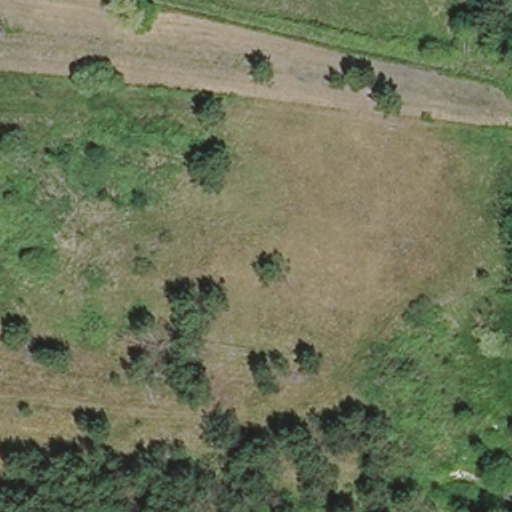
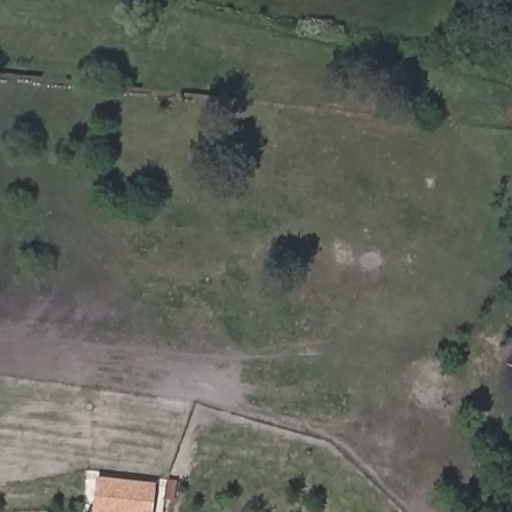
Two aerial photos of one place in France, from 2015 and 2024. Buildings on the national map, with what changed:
new [(155,482),(152,512),(91,512),(95,475),(155,482)]

